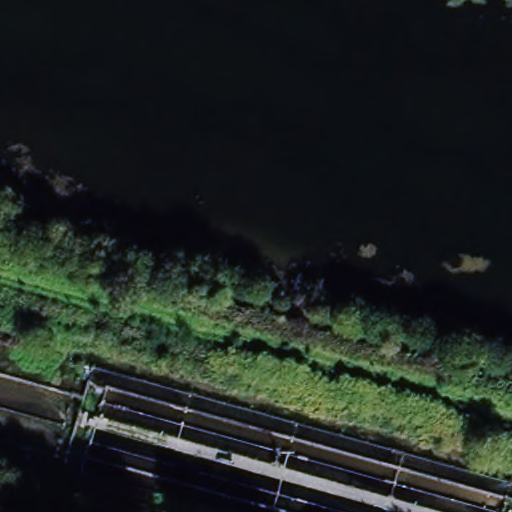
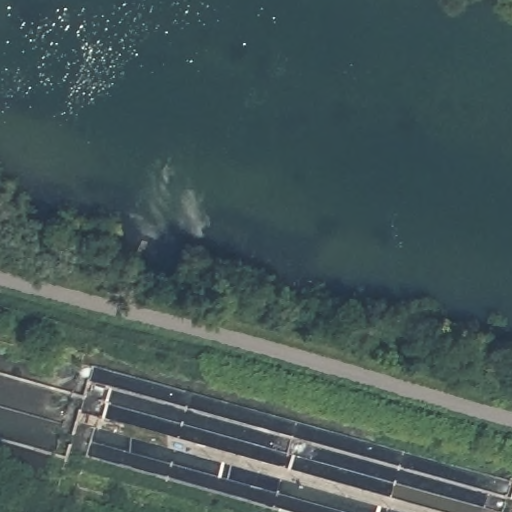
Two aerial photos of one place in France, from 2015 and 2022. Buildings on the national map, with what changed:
[]

